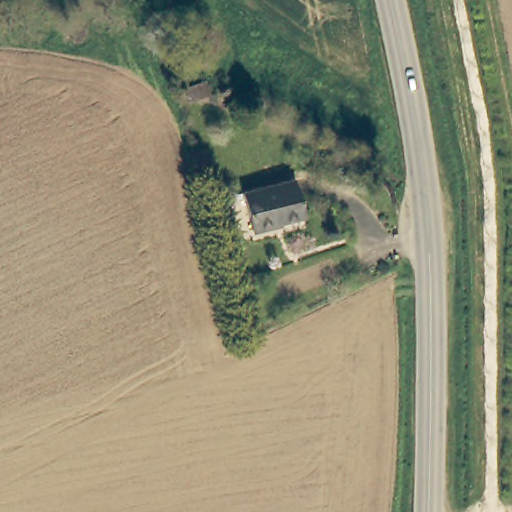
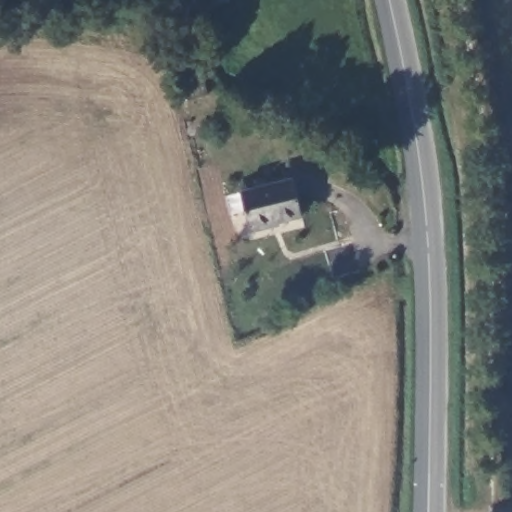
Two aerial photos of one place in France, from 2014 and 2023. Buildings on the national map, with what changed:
unchanged [(236,194),(290,183),(299,220),(245,231),(236,194)]

